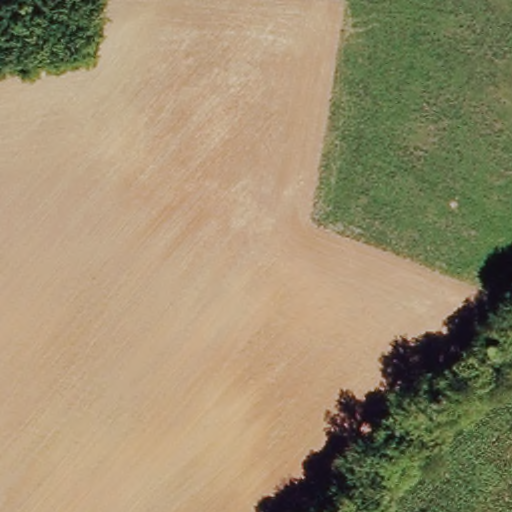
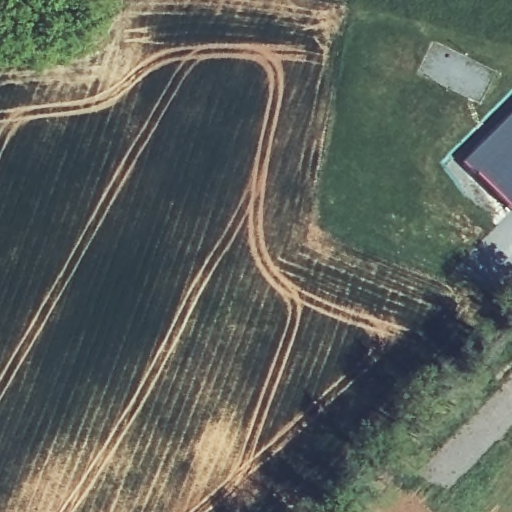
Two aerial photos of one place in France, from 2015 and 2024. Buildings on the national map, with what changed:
new [(511,208),(464,160),(512,112),(512,208),(511,208)]

